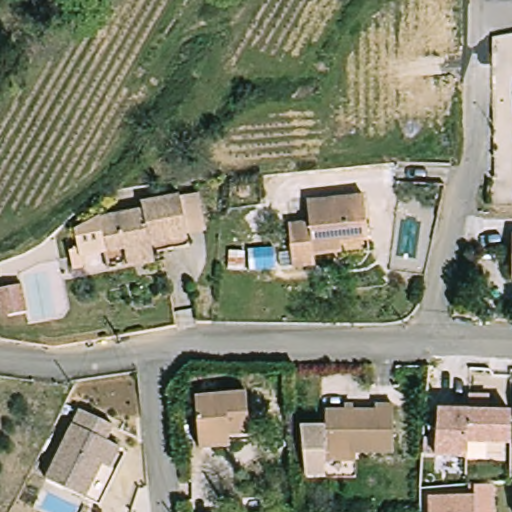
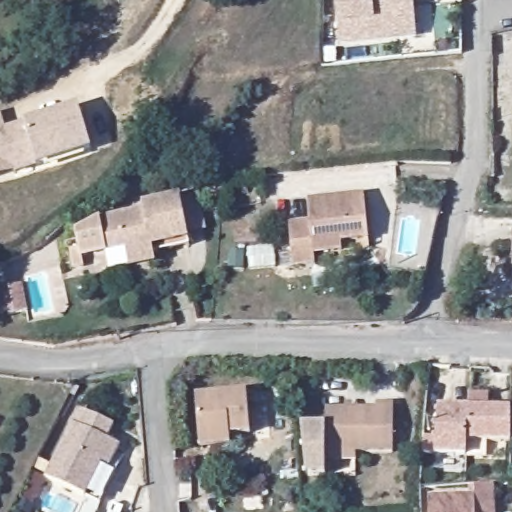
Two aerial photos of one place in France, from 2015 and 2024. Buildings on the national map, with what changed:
new [(339,44),(334,0),(412,0),(414,11),(416,36),(398,37),(339,44)]
new [(23,122),(77,106),(90,151),(35,168),(0,178),(0,117),(4,128),(23,122)]
unchanged [(158,252),(160,261),(115,270),(111,251),(86,256),(88,266),(79,267),(76,256),(85,254),(81,234),(104,217),(148,209),(147,202),(184,195),(201,191),(209,229),(192,232),(193,237),(194,244),(158,252)]
unchanged [(315,222),(312,201),(369,195),(373,239),(346,242),(347,251),(318,254),(319,263),(286,267),(284,252),(296,252),(293,225),(315,222)]
unchanged [(23,283),(28,312),(9,315),(4,287),(23,283)]
unchanged [(247,391),(250,433),(230,435),(231,445),(200,447),(195,395),(247,391)]
unchanged [(330,461),(330,477),(311,476),(306,425),(331,426),(331,409),(382,410),(382,405),(399,405),(398,453),(361,453),(361,461),(330,461)]
unchanged [(49,475),(85,407),(119,424),(111,438),(124,446),(114,465),(120,468),(102,503),(49,475)]
unchanged [(465,457),(436,457),(437,411),(467,412),(466,442),(465,457)]
unchanged [(510,412),(510,444),(466,442),(467,412),(510,412)]
unchanged [(494,486),(495,512),(428,512),(428,497),(474,495),(474,485),(494,484),(494,486)]

